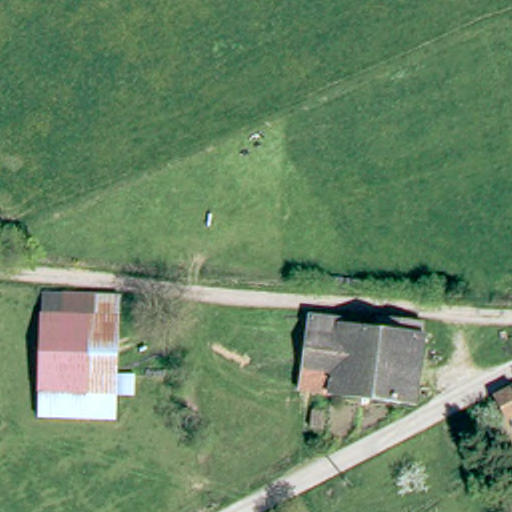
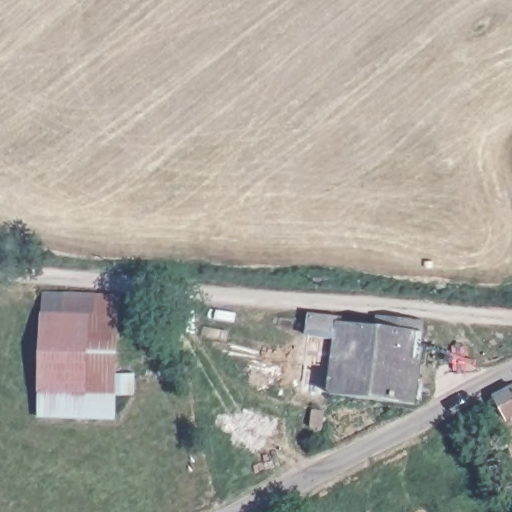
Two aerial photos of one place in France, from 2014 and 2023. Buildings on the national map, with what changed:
unchanged [(119,375),(135,374),(134,397),(118,397),(117,422),(38,421),(43,292),(121,295),(119,375)]
unchanged [(421,338),(428,339),(413,409),(301,393),(312,317),(350,321),(349,329),(382,332),(384,319),(423,327),(421,338)]
unchanged [(487,399),(512,384),(512,414),(499,422),(487,399)]

